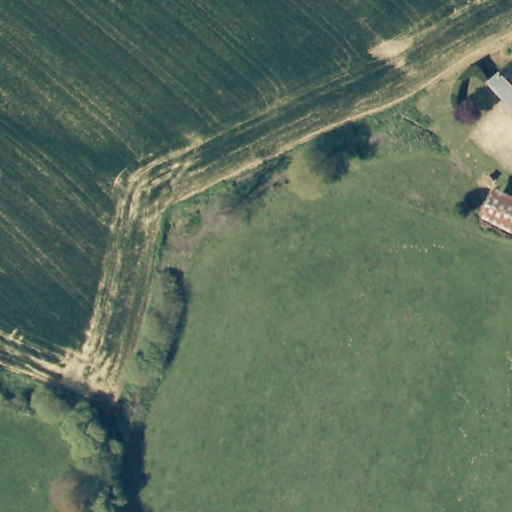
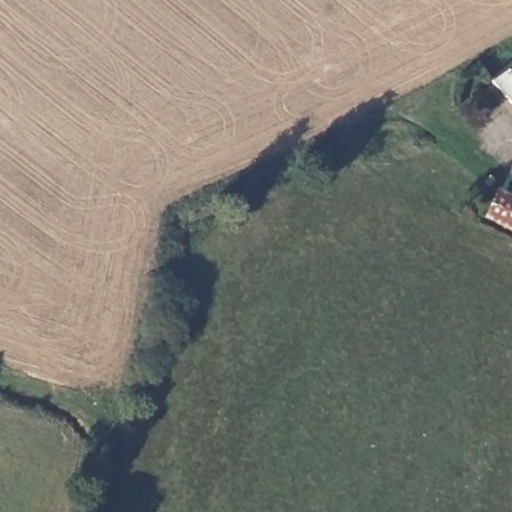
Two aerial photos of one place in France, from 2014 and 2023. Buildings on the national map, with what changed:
unchanged [(488,84),(512,64),(512,108),(488,84)]
unchanged [(512,203),(512,228),(490,218),(482,214),(494,194),(512,203)]

